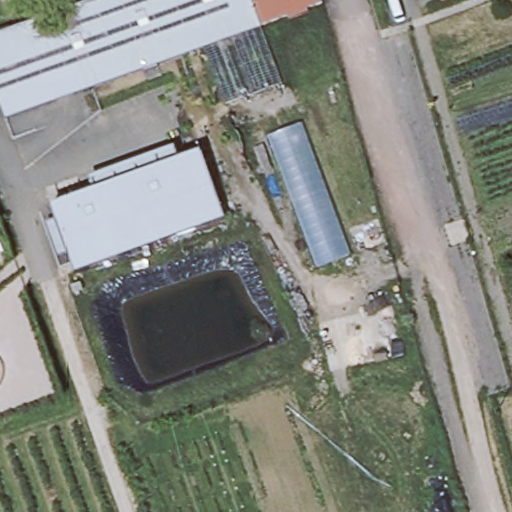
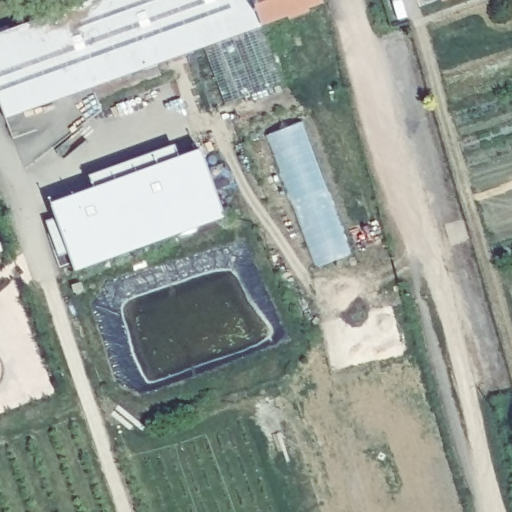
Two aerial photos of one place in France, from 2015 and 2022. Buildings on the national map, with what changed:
unchanged [(249,0),(258,25),(201,45),(1,116),(0,112),(0,32),(89,0),(249,0)]
unchanged [(319,0),(320,2),(259,24),(258,25),(249,0),(319,0)]
unchanged [(316,271),(266,136),(303,122),(351,256),(316,271)]
unchanged [(198,156),(221,221),(69,275),(46,210),(198,156)]

